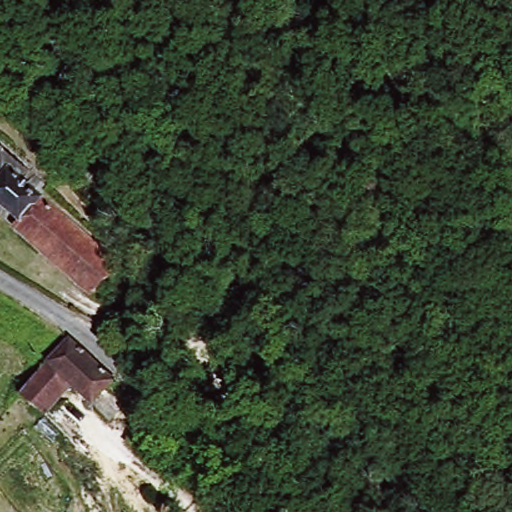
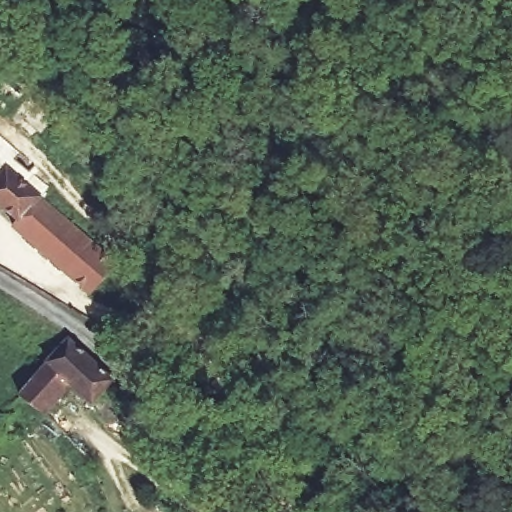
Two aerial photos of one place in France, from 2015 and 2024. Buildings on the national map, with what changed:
unchanged [(48,145),(39,155),(5,125),(14,116),(48,145)]
unchanged [(42,201),(14,225),(0,211),(0,176),(13,170),(42,201)]
unchanged [(53,197),(125,275),(95,304),(14,225),(42,201),(53,197)]
unchanged [(111,381),(90,406),(67,385),(42,417),(17,397),(44,363),(65,338),(111,381)]

